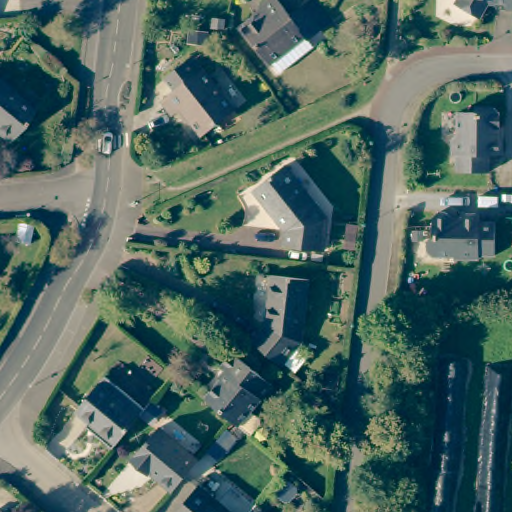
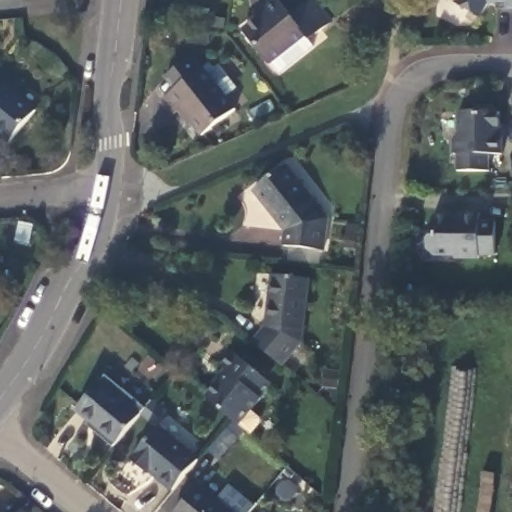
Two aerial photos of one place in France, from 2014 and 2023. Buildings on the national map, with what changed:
unchanged [(245,31),(257,22),(253,16),(273,0),(279,0),(292,16),(312,0),(313,0),(331,22),(309,40),(316,48),(281,76),(245,31)]
unchanged [(512,11),(496,11),(497,6),(488,5),(480,19),(456,5),(459,0),(512,0),(512,11)]
unchanged [(233,122),(219,132),(215,127),(205,134),(183,106),(174,113),(163,99),(178,87),(168,76),(195,56),(204,67),(235,107),(241,116),(233,122)]
unchanged [(32,110),(6,144),(0,139),(0,85),(32,110)]
unchanged [(462,113),(479,114),(479,109),(498,110),(503,115),(503,139),(505,139),(505,157),(492,156),(492,173),(459,172),(460,156),(456,156),(457,139),(462,134),(462,113)]
unchanged [(287,167),(327,215),(323,248),(285,244),(287,229),(257,192),(287,167)]
unchanged [(440,214),(449,214),(454,219),(463,219),(463,215),(481,216),(481,223),(497,224),(496,257),(480,257),(480,260),(456,259),(457,257),(434,256),(429,251),(430,241),(435,236),(435,219),(440,214)]
unchanged [(270,324),(275,279),(311,283),(304,341),(283,368),(254,345),(270,324)]
unchanged [(226,375),(219,369),(230,355),(271,387),(249,413),(258,422),(259,427),(249,440),(228,422),(203,402),(226,375)]
unchanged [(88,425),(75,413),(100,384),(104,378),(144,411),(115,447),(111,452),(93,437),(84,429),(88,425)]
unchanged [(148,470),(144,471),(131,460),(159,426),(197,457),(170,489),(148,470)]
unchanged [(233,512),(174,512),(198,483),(233,512)]

